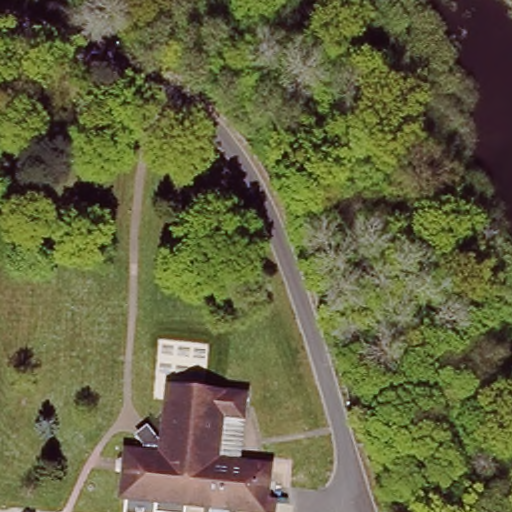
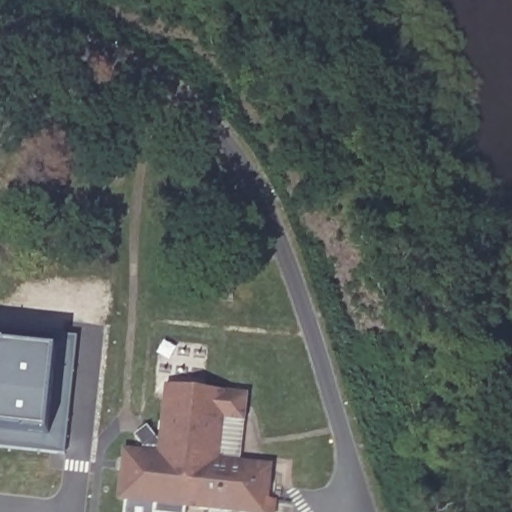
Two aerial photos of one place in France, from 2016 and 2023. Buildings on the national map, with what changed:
new [(0,329),(80,336),(67,453),(0,448),(0,329)]
unchanged [(274,512),(265,511),(120,495),(125,445),(148,448),(141,438),(152,427),(162,436),(167,381),(248,389),(245,415),(222,414),(217,456),(270,461),(267,494),(275,495),(274,512)]

